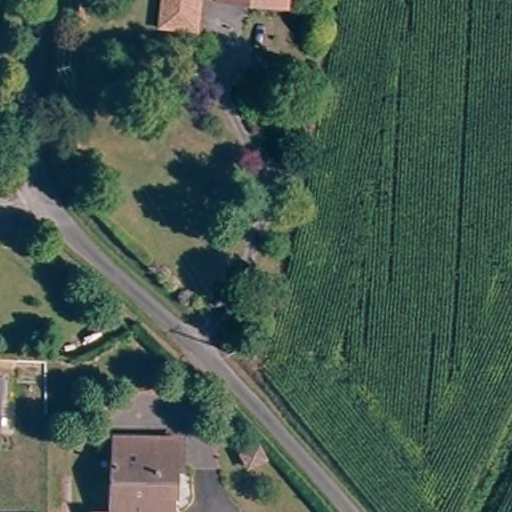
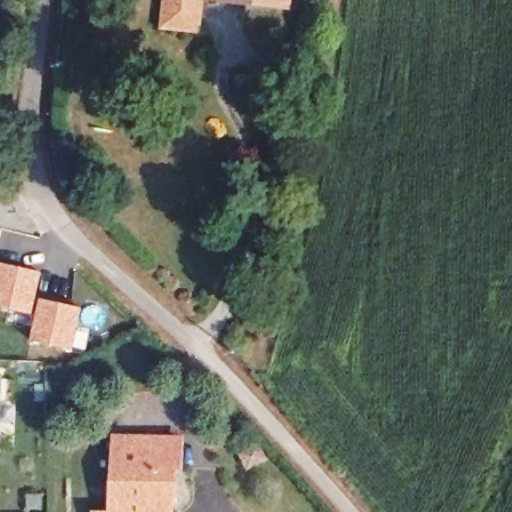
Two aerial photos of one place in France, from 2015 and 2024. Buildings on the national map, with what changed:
unchanged [(163,28),(166,0),(199,0),(195,33),(163,28)]
unchanged [(217,1),(217,0),(241,0),(241,4),(217,1)]
unchanged [(265,7),(266,0),(290,0),(289,9),(265,7)]
new [(37,297),(33,314),(0,307),(0,262),(41,271),(37,297)]
new [(33,314),(37,297),(82,308),(78,329),(89,331),(85,351),(29,340),(33,314)]
unchanged [(3,400),(0,400),(0,379),(3,379),(3,400)]
unchanged [(118,438),(187,439),(186,473),(176,473),(175,512),(114,512),(118,438)]
unchanged [(266,460),(247,470),(240,456),(259,446),(266,460)]

